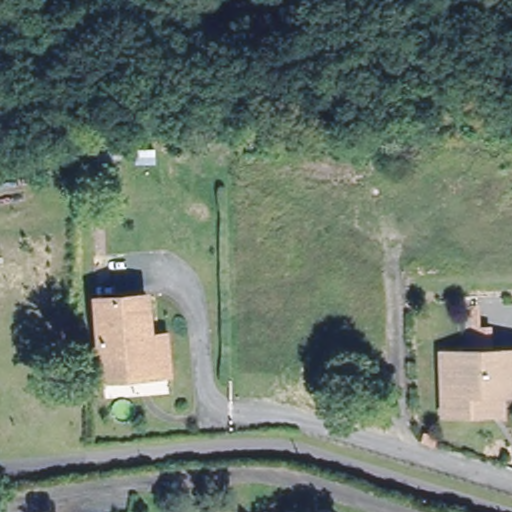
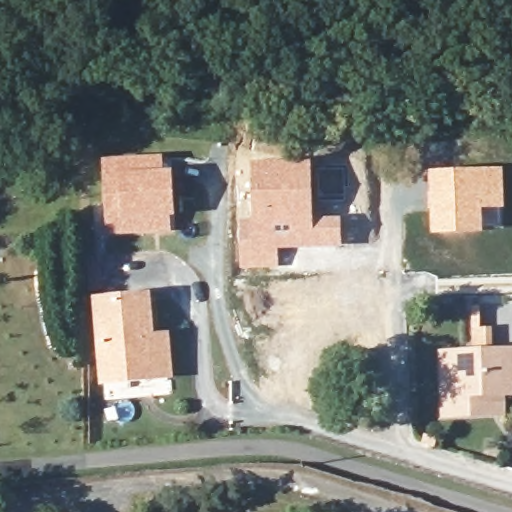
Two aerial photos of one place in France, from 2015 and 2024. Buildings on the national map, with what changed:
new [(164,156),(165,170),(173,170),(175,218),(172,218),(172,234),(105,235),(101,159),(164,156)]
new [(249,215),(251,159),(312,159),(314,216),(342,217),(342,247),(278,250),(279,267),(239,268),(238,216),(249,215)]
new [(503,168),(505,209),(483,210),(483,233),(430,235),(428,171),(503,168)]
unchanged [(171,371),(156,372),(107,377),(99,299),(148,294),(153,336),(168,335),(171,371)]
unchanged [(448,416),(446,353),(512,351),(512,393),(507,393),(508,413),(481,414),(448,416)]

